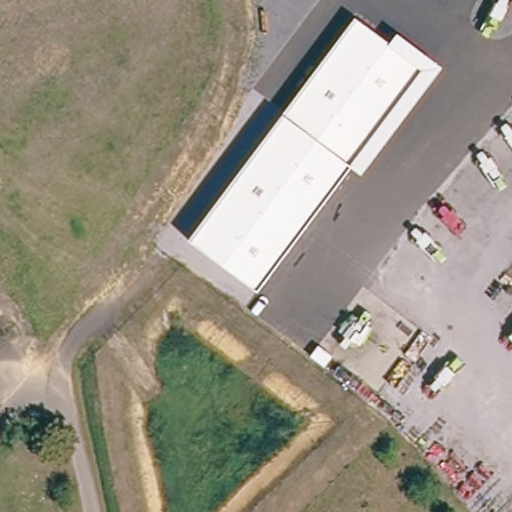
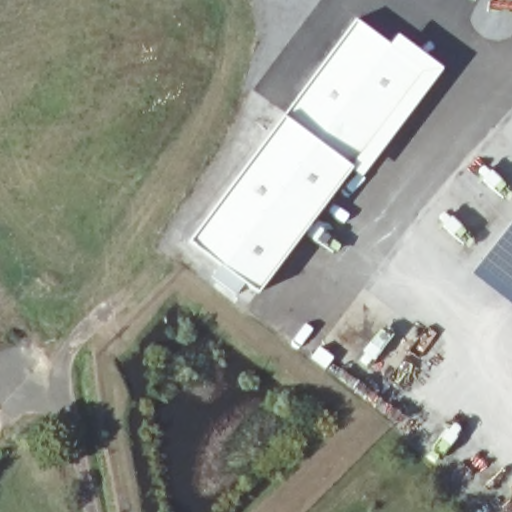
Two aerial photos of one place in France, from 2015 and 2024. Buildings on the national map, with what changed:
unchanged [(354,19),(390,44),(397,36),(444,69),(361,176),(348,166),(257,292),(187,240),(354,19)]
new [(512,223),(512,305),(471,274),(512,223)]

